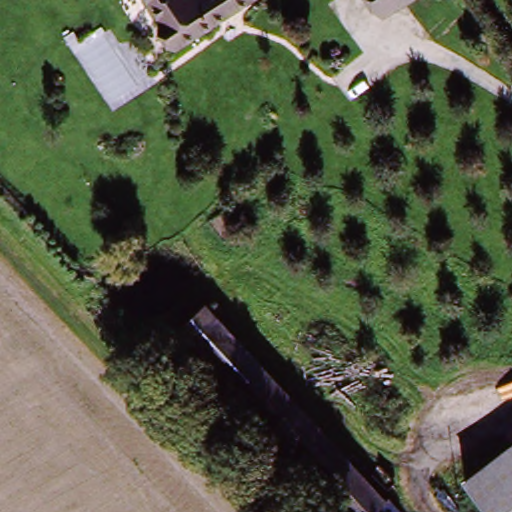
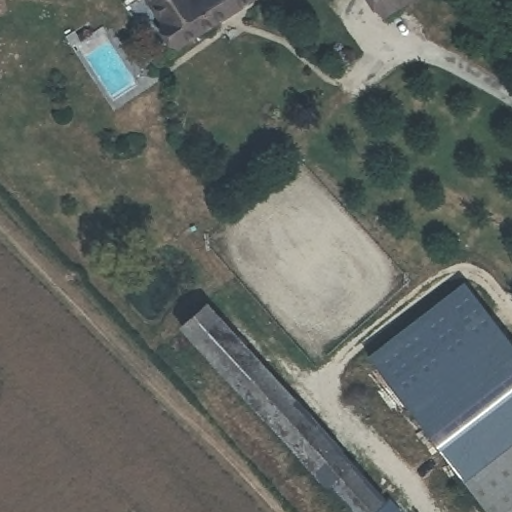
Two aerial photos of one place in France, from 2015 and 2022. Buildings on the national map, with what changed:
unchanged [(181,46),(162,19),(172,11),(165,0),(248,0),(181,46)]
unchanged [(382,24),(369,0),(424,0),(382,24)]
new [(512,343),(512,443),(464,481),(367,356),(462,281),(512,343)]
unchanged [(310,473),(165,320),(170,313),(164,307),(180,292),(187,300),(192,300),(396,512),(352,512),(313,471),(310,473)]
unchanged [(472,512),(455,490),(512,443),(512,512),(472,512)]

